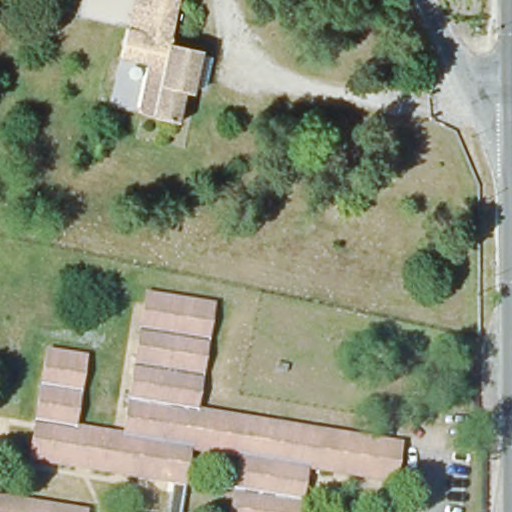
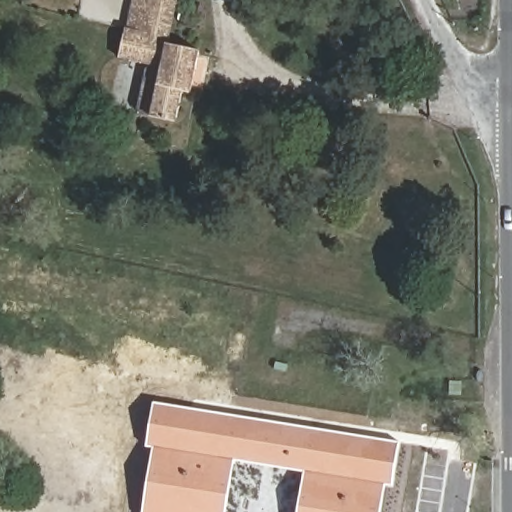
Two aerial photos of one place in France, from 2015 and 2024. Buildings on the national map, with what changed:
unchanged [(133,0),(179,0),(171,37),(173,37),(171,44),(200,50),(192,92),(184,90),(177,121),(151,115),(163,67),(121,57),(128,28),(133,0)]
demolished [(179,512),(169,512),(174,482),(30,458),(42,385),(48,350),(85,356),(74,427),(123,434),(147,293),(213,304),(195,409),(400,443),(394,481),(305,467),(298,512),(231,512),(240,456),(189,448),(179,512)]
unchanged [(288,364),(287,371),(274,368),(277,361),(288,364)]
new [(146,446),(154,402),(400,442),(394,486),(387,485),(382,512),(297,512),(304,472),(234,461),(226,512),(143,512),(154,447),(146,446)]
demolished [(86,512),(0,512),(0,497),(86,511),(86,512)]

